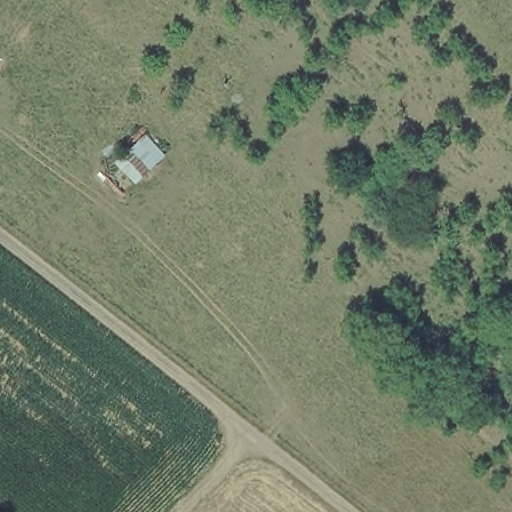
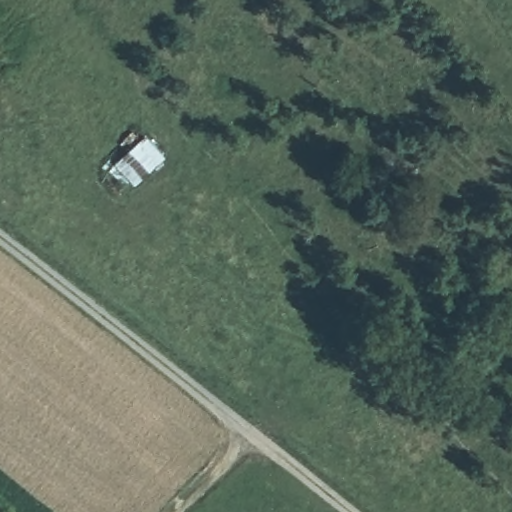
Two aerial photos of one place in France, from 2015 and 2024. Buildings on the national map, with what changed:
unchanged [(99,175),(143,133),(168,154),(123,198),(99,175)]

